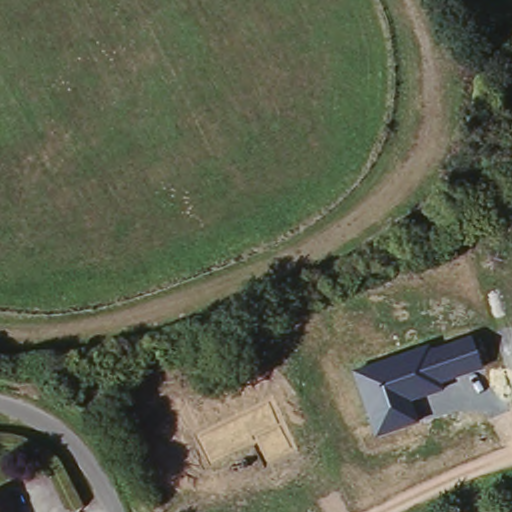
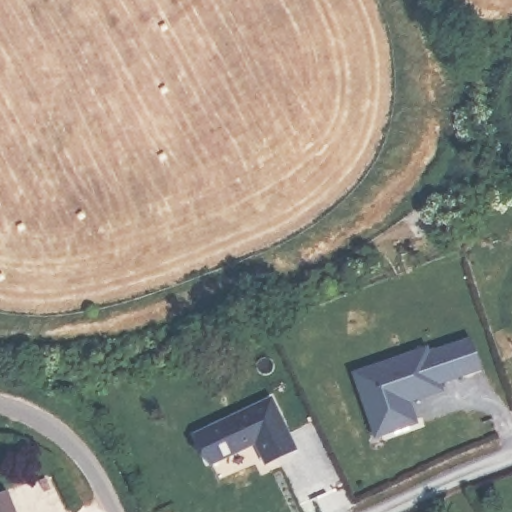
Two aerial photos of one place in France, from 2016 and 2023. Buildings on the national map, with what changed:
unchanged [(438,385),(441,391),(410,404),(417,422),(376,436),(353,374),(425,349),(427,353),(470,337),(483,369),(438,385)]
new [(265,401),(291,450),(263,464),(251,442),(206,465),(193,438),(265,401)]
unchanged [(17,512),(0,512),(0,489),(6,486),(17,512)]

